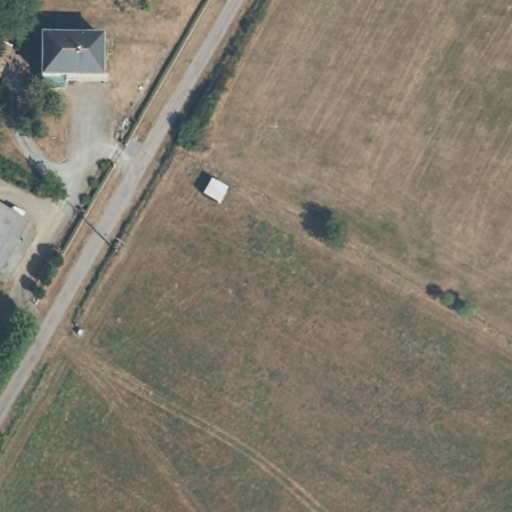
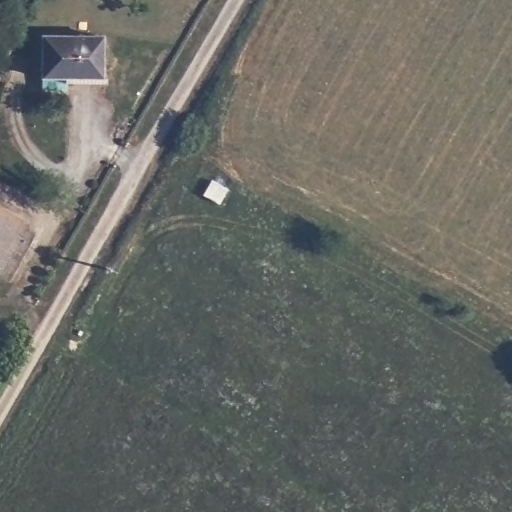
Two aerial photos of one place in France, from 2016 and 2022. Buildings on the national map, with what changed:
unchanged [(107,30),(106,71),(44,70),(44,27),(107,30)]
unchanged [(211,171),(232,184),(221,203),(201,189),(211,171)]
unchanged [(30,220),(0,271),(0,202),(30,220)]

